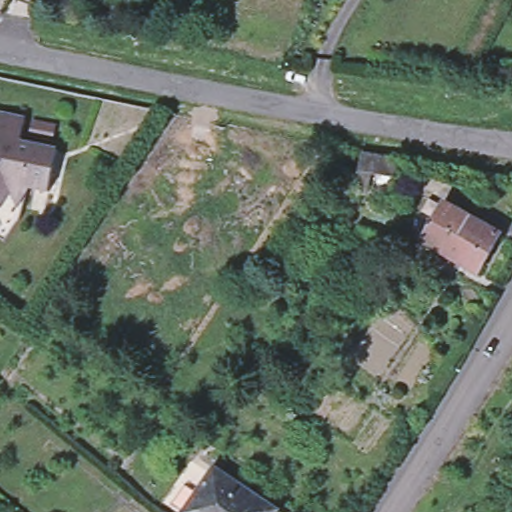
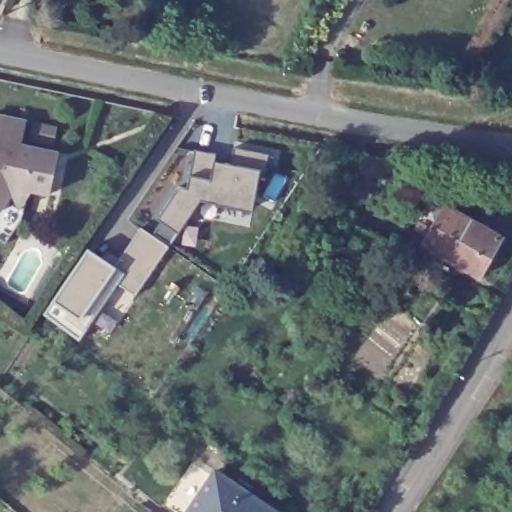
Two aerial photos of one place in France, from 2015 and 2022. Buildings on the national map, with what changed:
unchanged [(45,195),(25,191),(19,221),(3,245),(0,243),(0,119),(20,123),(15,146),(52,155),(45,195)]
new [(112,268),(140,228),(151,236),(156,229),(162,218),(158,215),(177,186),(186,188),(193,150),(208,152),(208,151),(215,153),(213,163),(224,165),(225,161),(230,162),(233,145),(242,147),(241,149),(269,154),(269,155),(265,176),(260,175),(257,190),(250,189),(247,211),(215,205),(215,203),(200,200),(180,230),(173,240),(168,248),(168,247),(134,298),(117,286),(78,343),(43,316),(80,260),(107,277),(112,268)]
unchanged [(400,160),(397,182),(361,175),(365,153),(400,160)]
unchanged [(422,246),(431,231),(427,229),(430,222),(435,224),(445,209),(462,219),(501,241),(480,279),(441,256),(422,246)]
unchanged [(385,242),(371,268),(346,255),(360,229),(385,242)]
unchanged [(396,242),(408,251),(403,258),(392,249),(396,242)]
unchanged [(188,512),(216,471),(277,512),(188,512)]

